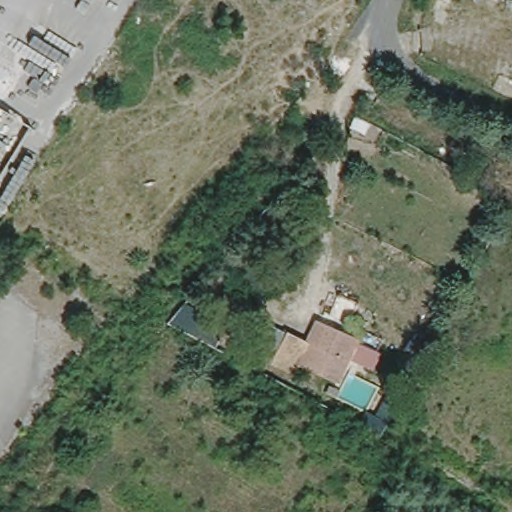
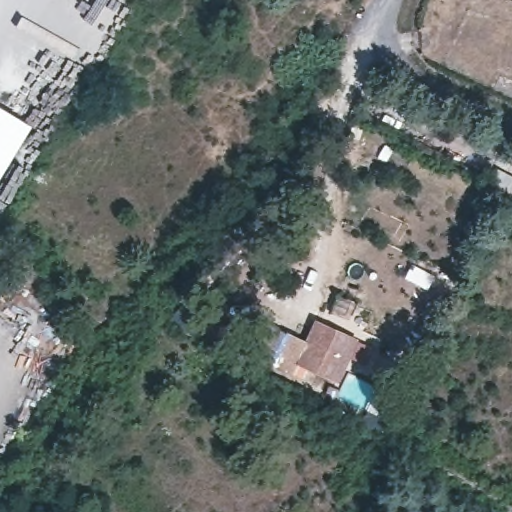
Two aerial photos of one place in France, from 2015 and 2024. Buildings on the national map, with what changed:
new [(33,126),(0,180),(0,106),(33,126)]
unchanged [(357,340),(339,380),(299,361),(294,370),(247,348),(260,320),(307,342),(317,322),(357,340)]
unchanged [(338,398),(327,392),(330,385),(342,391),(339,397),(338,398)]

